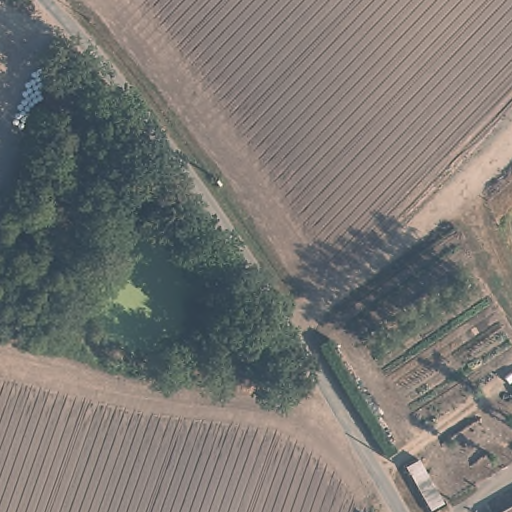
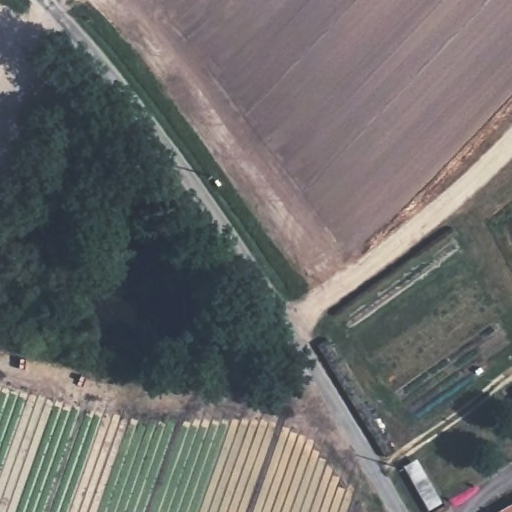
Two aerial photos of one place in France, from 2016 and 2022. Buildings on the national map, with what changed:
unchanged [(501,512),(512,506),(512,512),(501,512)]

